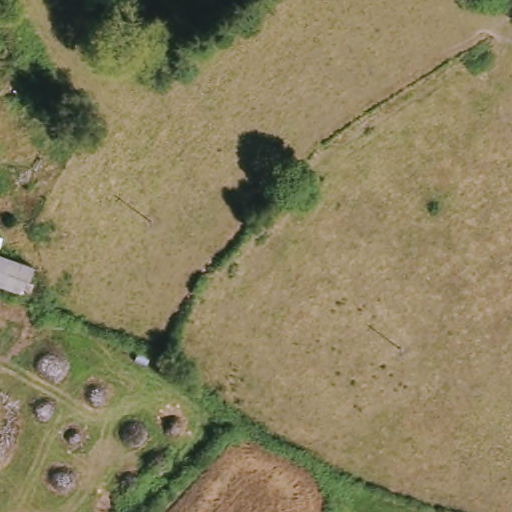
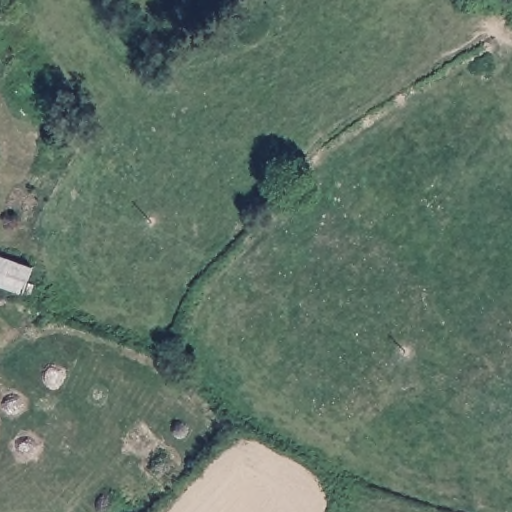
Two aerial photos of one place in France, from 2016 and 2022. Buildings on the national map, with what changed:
unchanged [(25,277),(19,291),(0,283),(0,254),(12,258),(30,266),(25,277)]

